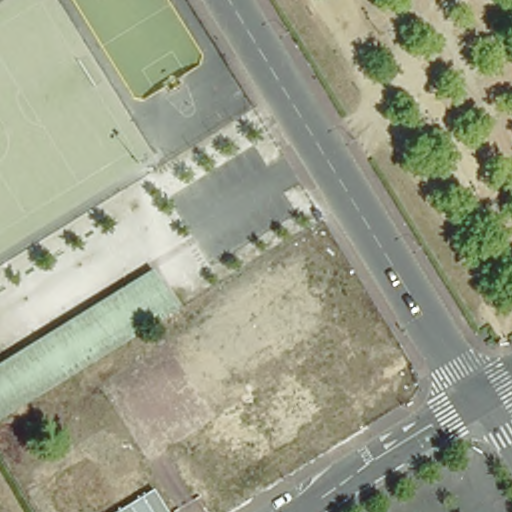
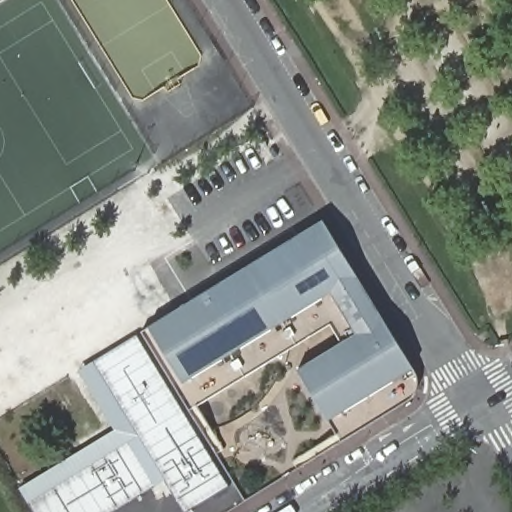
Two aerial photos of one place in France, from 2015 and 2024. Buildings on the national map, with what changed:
new [(417,393),(413,398),(407,404),(342,442),(296,369),(342,342),(332,324),(190,410),(142,328),(179,304),(322,220),(413,366),(417,374),(419,380),(419,384),(417,393)]
demolished [(264,363),(248,374),(231,347),(202,299),(294,242),(313,272),(322,286),(340,316),(349,329),(318,349),(309,335),(277,356),(264,363)]
unchanged [(0,417),(0,358),(155,265),(179,304),(0,417)]
new [(115,431),(79,371),(137,335),(229,487),(187,512),(184,512),(165,481),(113,512),(33,512),(19,489),(115,431)]
demolished [(207,489),(203,483),(184,452),(282,392),(294,384),(298,382),(295,379),(307,372),(309,375),(324,366),(339,390),(348,405),(363,429),(229,512),(221,512),(207,489)]
demolished [(85,464),(109,503),(96,512),(62,512),(47,489),(85,464)]

